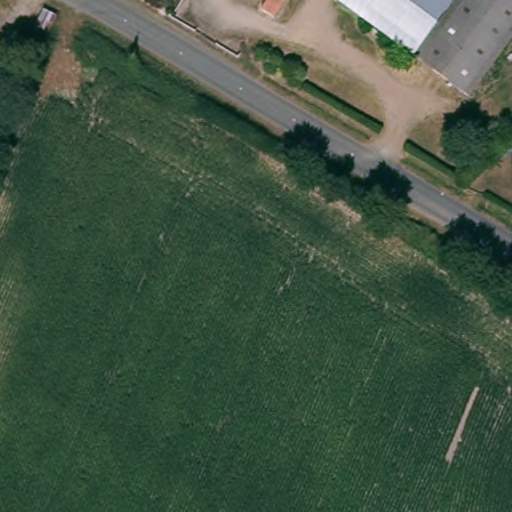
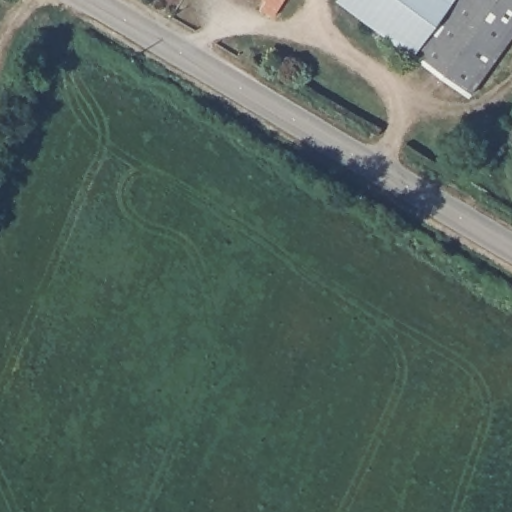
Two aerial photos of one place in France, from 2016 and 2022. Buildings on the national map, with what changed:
unchanged [(277,18),(262,10),(268,0),(288,0),(277,18)]
unchanged [(456,4),(421,59),(340,2),(342,0),(450,0),(456,4)]
unchanged [(450,0),(512,0),(512,39),(473,95),(421,59),(456,4),(450,0)]

